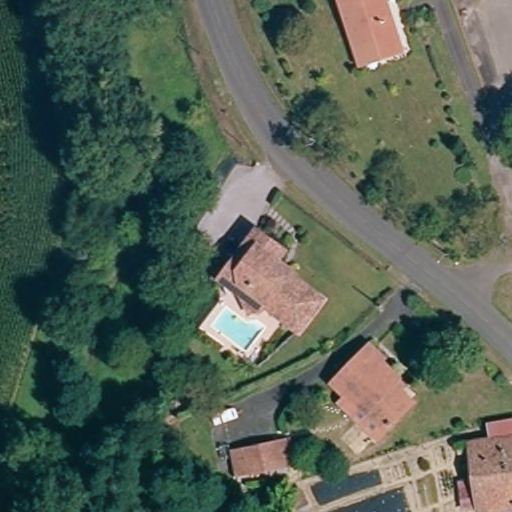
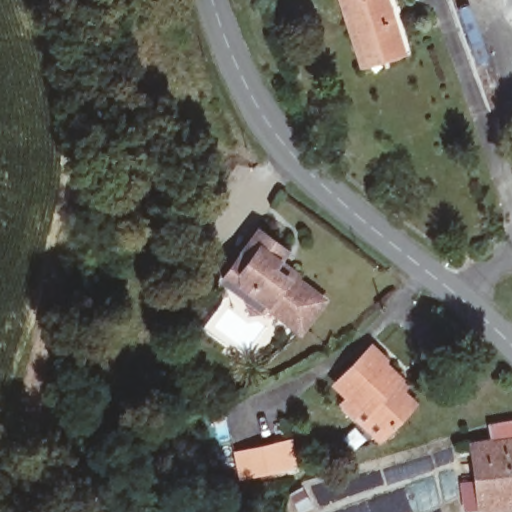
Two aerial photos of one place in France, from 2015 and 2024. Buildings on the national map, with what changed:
unchanged [(361,66),(352,43),(337,0),(383,0),(395,33),(402,50),(361,66)]
unchanged [(280,259),(273,269),(290,283),(295,277),(326,303),(303,330),(271,306),(265,311),(247,299),(252,289),(242,282),(246,259),(240,254),(261,228),(287,249),(280,259)]
unchanged [(339,405),(347,396),(336,384),(372,346),(384,359),(381,364),(397,382),(393,386),(411,406),(383,434),(373,444),(339,405)]
unchanged [(458,477),(472,480),(470,443),(491,440),(491,419),(512,418),(512,512),(460,512),(458,477)]
unchanged [(229,452),(247,448),(280,441),(288,439),(296,470),(287,472),(254,479),(236,483),(229,452)]

